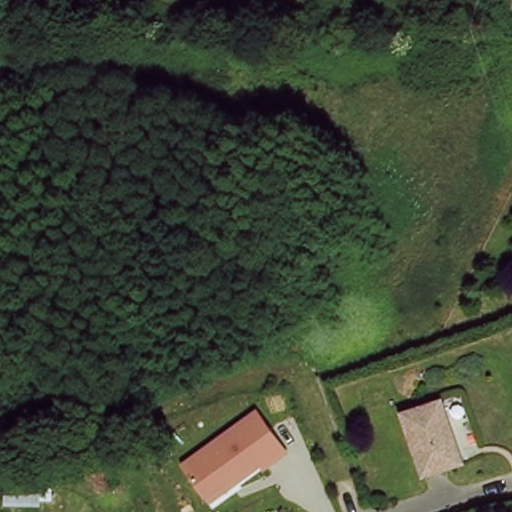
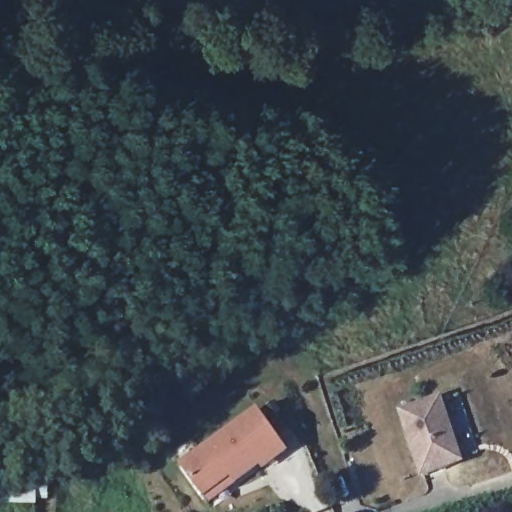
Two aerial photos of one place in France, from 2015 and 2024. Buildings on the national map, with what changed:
unchanged [(403,416),(440,403),(460,463),(423,475),(403,416)]
unchanged [(208,506),(178,464),(258,409),(288,453),(208,506)]
unchanged [(42,506),(2,508),(3,482),(41,483),(42,506)]

